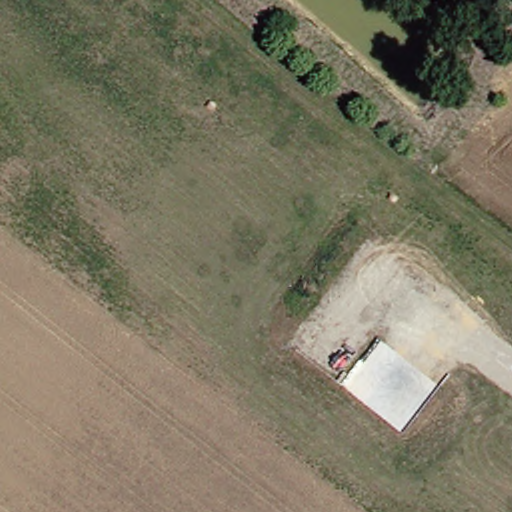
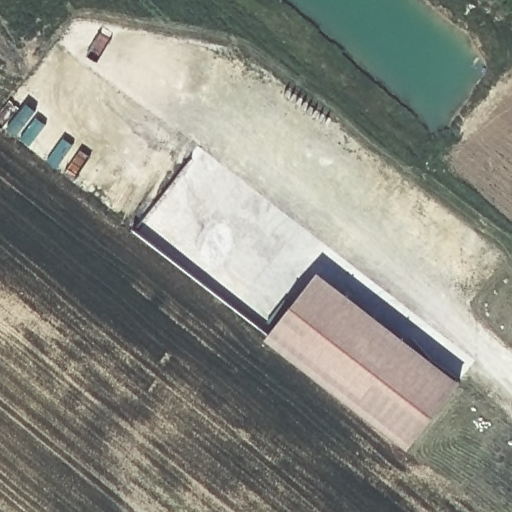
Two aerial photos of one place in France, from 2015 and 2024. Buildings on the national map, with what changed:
new [(318,274),(456,382),(405,447),(267,339),(318,274)]

